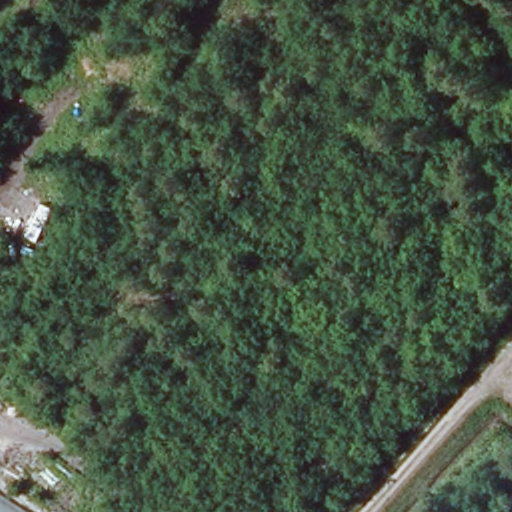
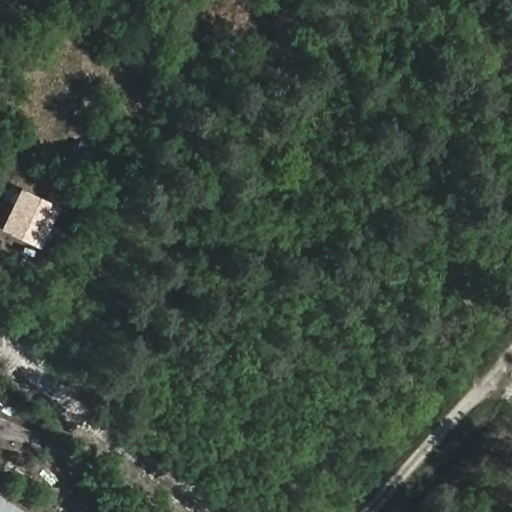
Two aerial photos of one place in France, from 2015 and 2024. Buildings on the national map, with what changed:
new [(42,248),(3,228),(22,187),(61,206),(42,248)]
unchanged [(0,512),(0,496),(25,512),(0,512)]

